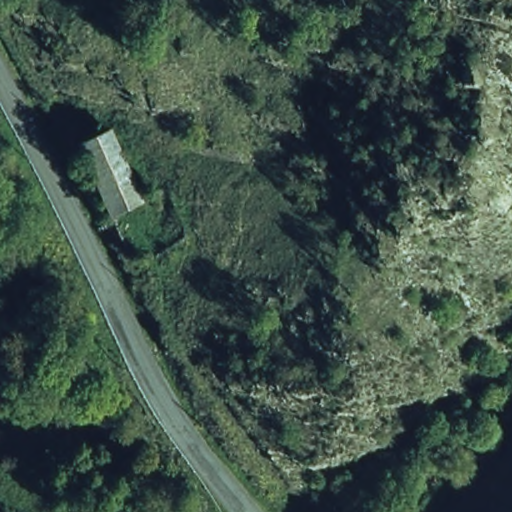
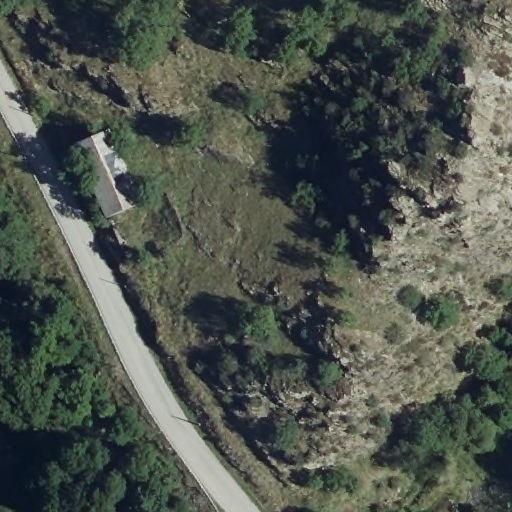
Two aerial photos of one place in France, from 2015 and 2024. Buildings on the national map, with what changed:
unchanged [(105,133),(138,205),(125,210),(104,219),(72,147),(84,142),(105,133)]

